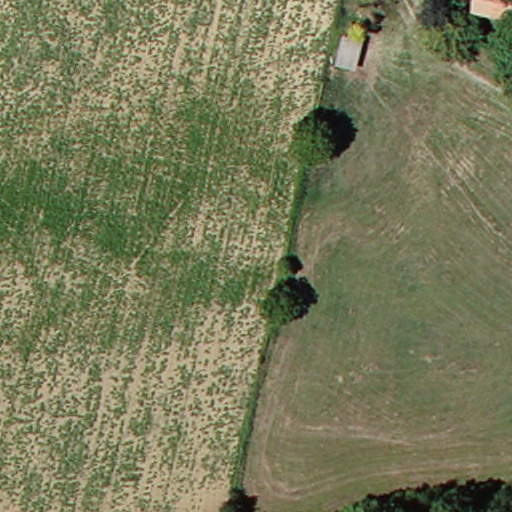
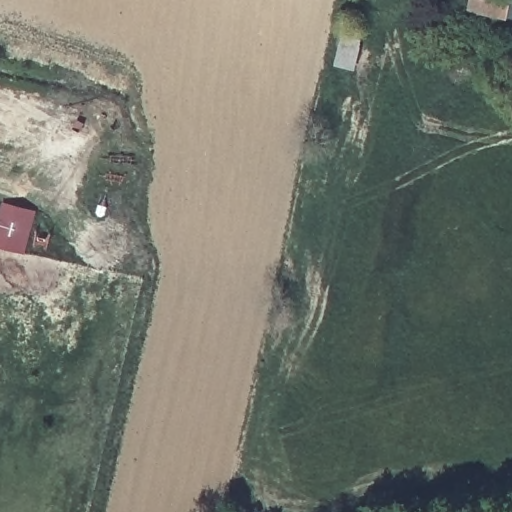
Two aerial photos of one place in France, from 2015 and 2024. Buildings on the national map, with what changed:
unchanged [(478,0),(512,0),(512,17),(476,8),(478,0)]
new [(4,203),(38,212),(27,254),(0,248),(0,217),(4,203)]

